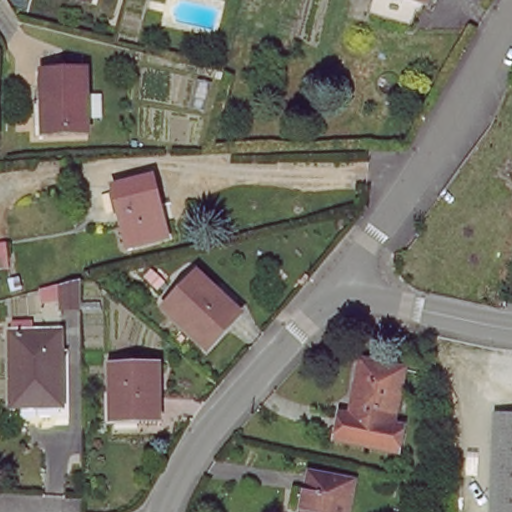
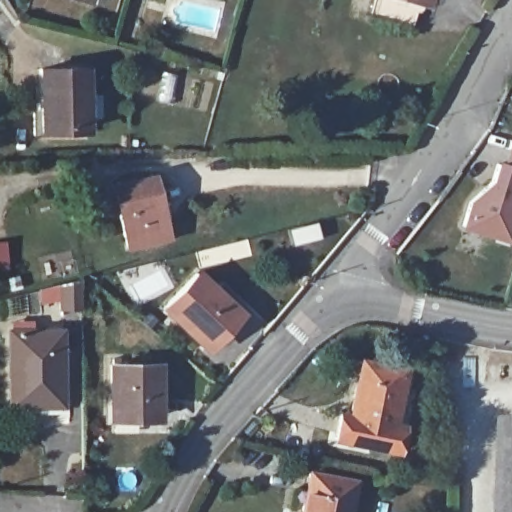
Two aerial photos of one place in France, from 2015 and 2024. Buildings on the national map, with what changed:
unchanged [(371,9),(374,0),(421,0),(414,21),(371,9)]
unchanged [(83,69),(88,126),(45,130),(40,72),(83,69)]
new [(489,177),(494,161),(503,162),(511,131),(512,132),(512,225),(507,242),(458,229),(467,198),(489,177)]
unchanged [(111,187),(156,176),(163,206),(153,208),(159,238),(125,246),(111,187)]
unchanged [(238,308),(208,344),(168,309),(198,273),(238,308)]
unchanged [(65,305),(65,281),(84,276),(84,305),(65,305)]
unchanged [(61,406),(13,407),(11,331),(11,322),(41,322),(40,331),(59,330),(61,406)]
unchanged [(399,370),(392,423),(401,424),(396,452),(333,443),(336,418),(349,420),(356,363),(399,370)]
unchanged [(159,366),(160,414),(113,415),(112,367),(159,366)]
unchanged [(512,416),(512,512),(495,512),(502,415),(512,416)]
unchanged [(356,481),(348,512),(303,512),(314,471),(356,481)]

